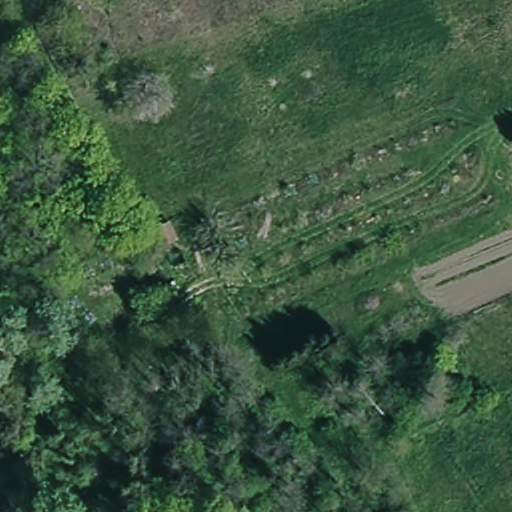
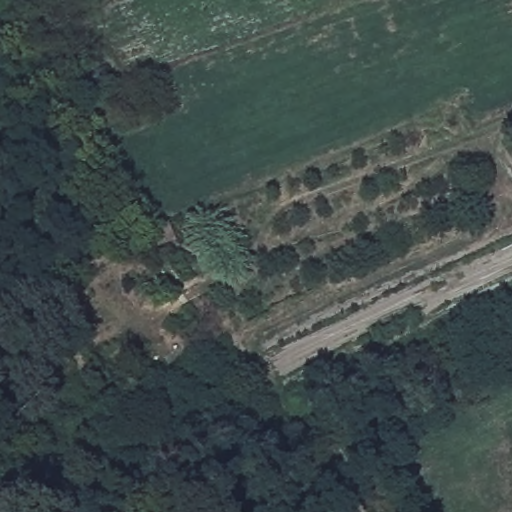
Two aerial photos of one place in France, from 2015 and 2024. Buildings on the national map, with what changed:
unchanged [(175,240),(160,247),(153,230),(168,224),(175,240)]

